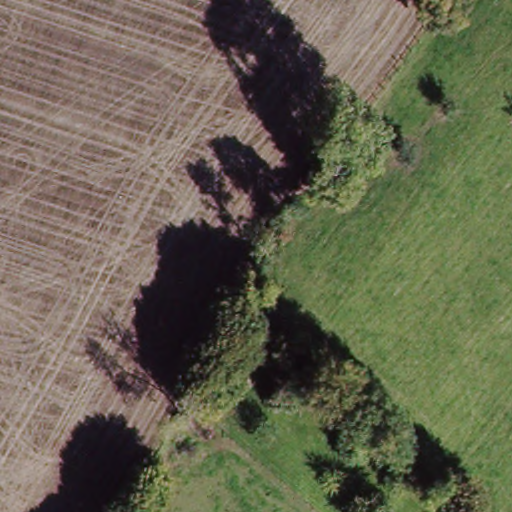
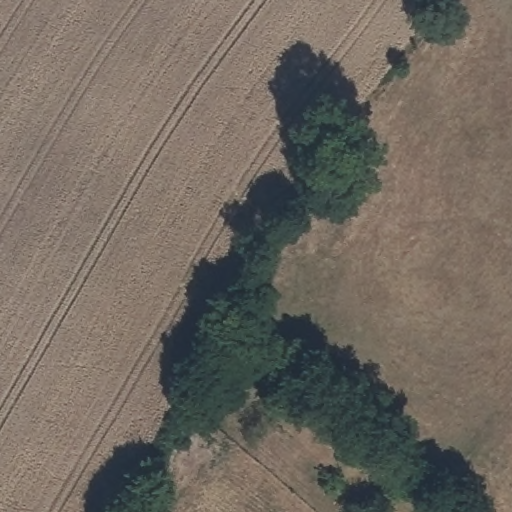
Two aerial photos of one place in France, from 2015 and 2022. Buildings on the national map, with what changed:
[]

